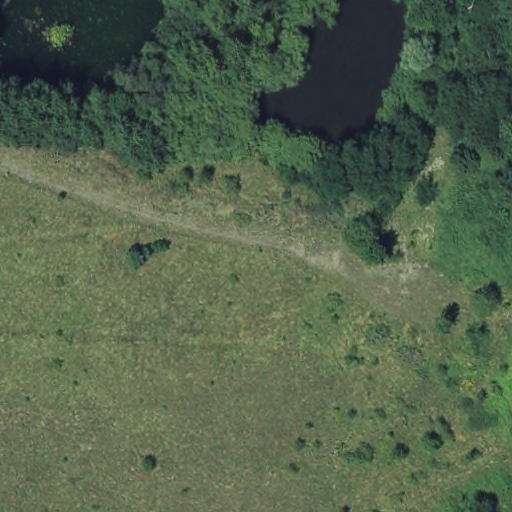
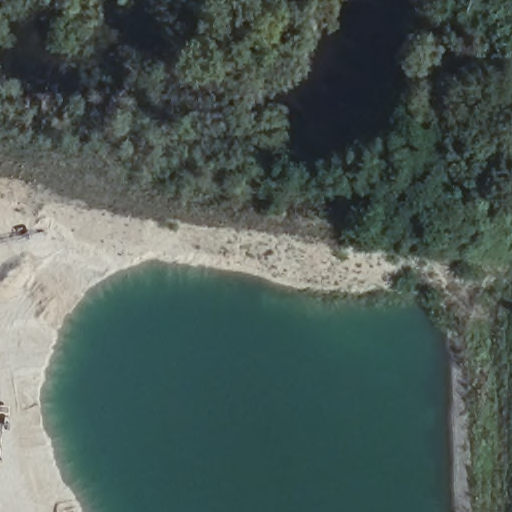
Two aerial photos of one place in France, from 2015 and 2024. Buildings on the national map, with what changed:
[]

